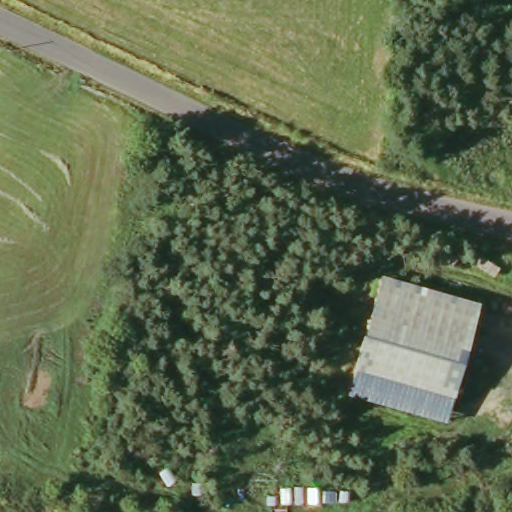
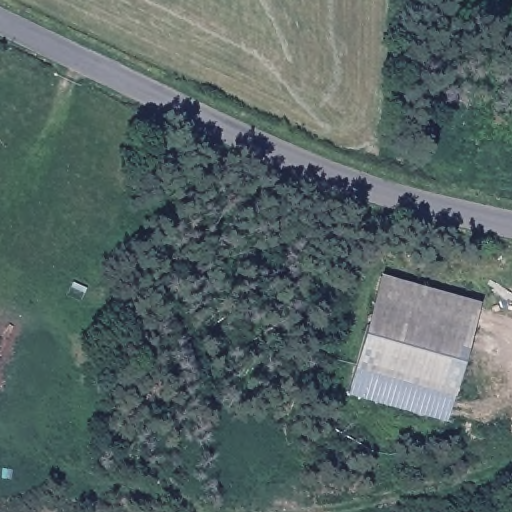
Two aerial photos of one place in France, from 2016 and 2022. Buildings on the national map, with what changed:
unchanged [(483,304),(448,424),(349,395),(385,273),(483,304)]

